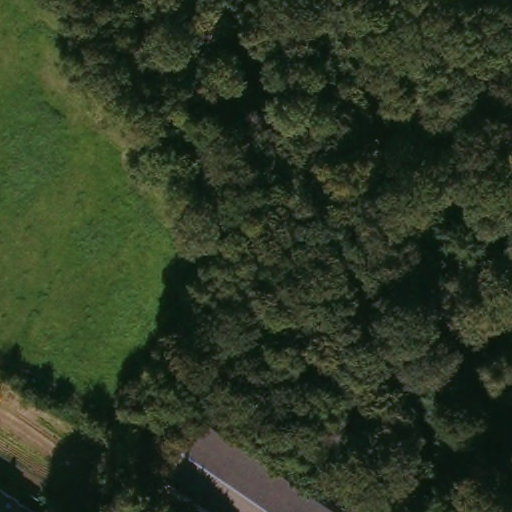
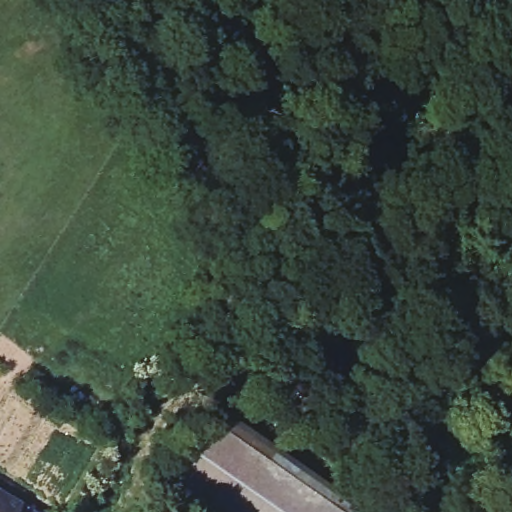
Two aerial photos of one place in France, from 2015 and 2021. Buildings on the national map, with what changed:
unchanged [(206,409),(342,512),(175,512),(145,490),(206,409)]
unchanged [(0,512),(0,497),(24,512),(0,512)]

